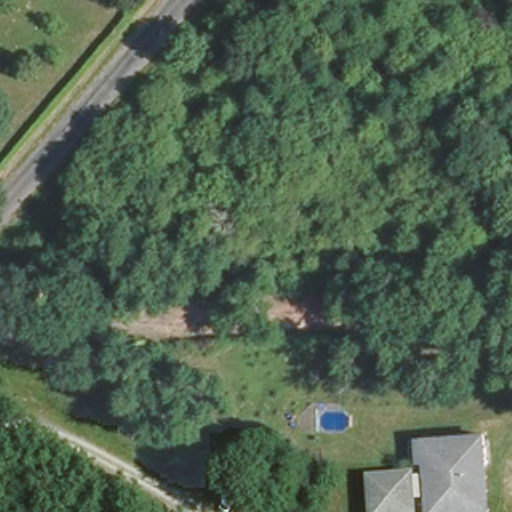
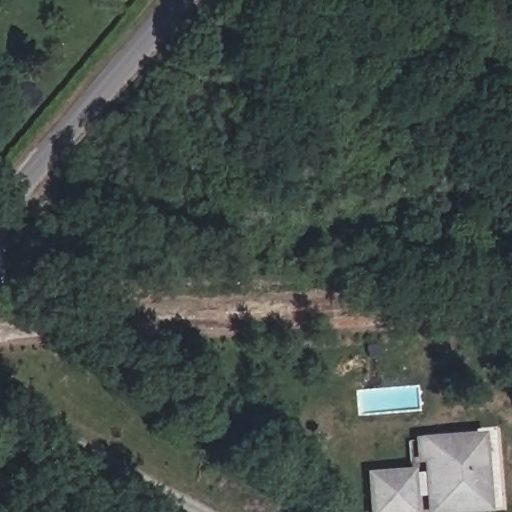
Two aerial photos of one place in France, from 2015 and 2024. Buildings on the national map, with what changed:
unchanged [(410,438),(483,432),(487,512),(364,512),(364,471),(410,466),(410,438)]

